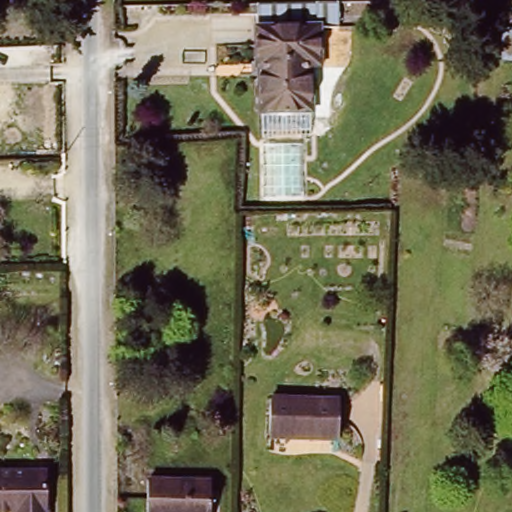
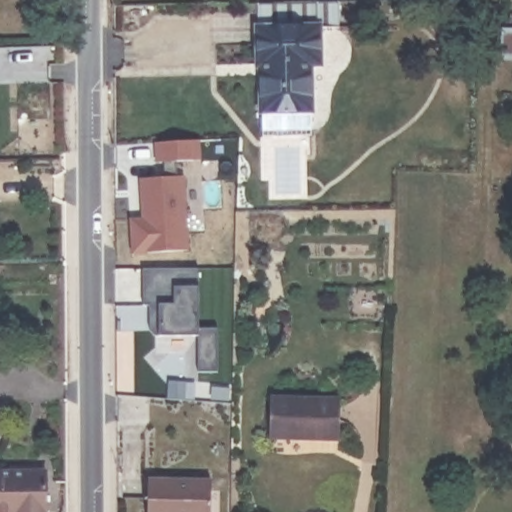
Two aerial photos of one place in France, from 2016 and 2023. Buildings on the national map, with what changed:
unchanged [(338,2),(338,30),(319,30),(320,74),(305,74),(305,137),(258,138),(257,76),(248,76),(248,65),(254,65),(253,4),(338,2)]
unchanged [(498,30),(512,30),(512,60),(500,60),(498,30)]
new [(131,255),(130,219),(142,218),(140,179),(164,177),(162,163),(156,163),(155,143),(199,141),(200,160),(175,161),(177,177),(185,177),(189,249),(131,255)]
new [(198,372),(197,336),(158,335),(150,336),(148,305),(143,305),(143,270),(198,269),(198,288),(198,329),(218,330),(218,372),(198,372)]
unchanged [(333,397),(332,434),(263,432),(265,394),(333,397)]
unchanged [(10,508),(0,508),(0,465),(39,465),(39,512),(10,512),(10,508)]
unchanged [(145,489),(145,478),(207,480),(207,489),(207,512),(144,512),(145,489)]

